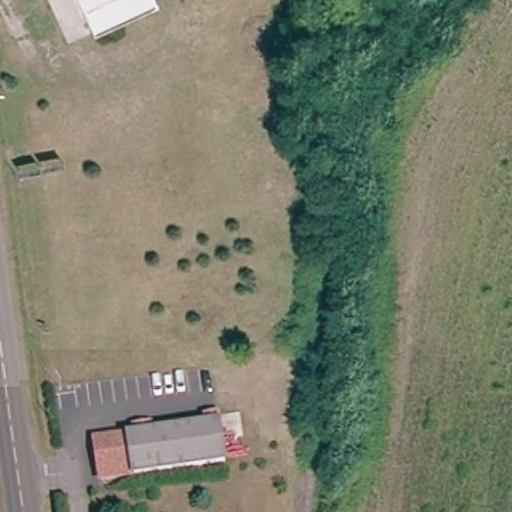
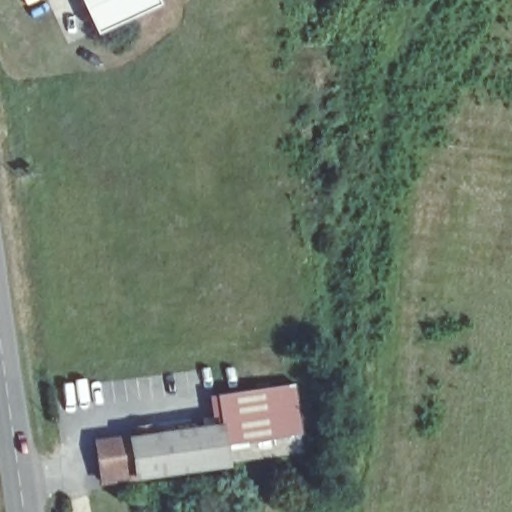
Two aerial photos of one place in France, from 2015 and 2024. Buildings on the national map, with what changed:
unchanged [(159,7),(114,27),(97,34),(95,29),(81,0),(155,0),(159,7)]
new [(226,443),(222,422),(218,422),(217,415),(210,416),(207,394),(215,393),(290,382),(298,433),(226,443)]
unchanged [(165,472),(107,479),(100,438),(206,425),(222,422),(230,463),(215,465),(165,472)]

